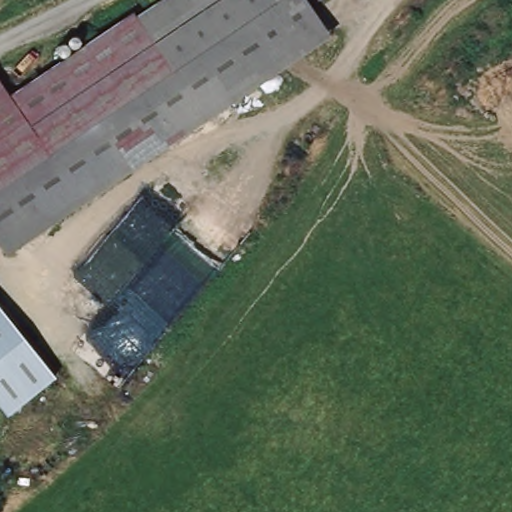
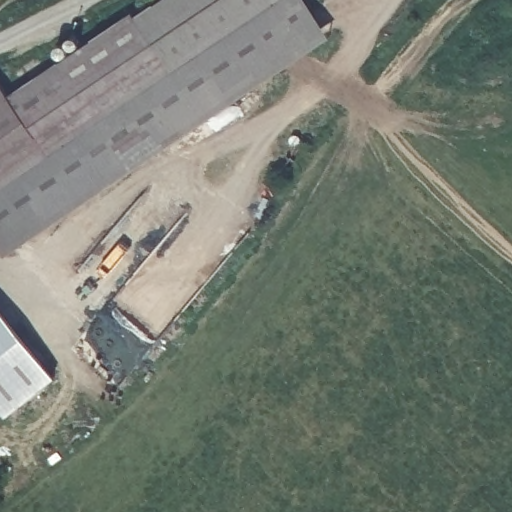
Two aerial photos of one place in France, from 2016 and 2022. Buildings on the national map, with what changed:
unchanged [(17,100),(132,22),(165,0),(311,0),(335,36),(190,135),(184,139),(174,125),(128,155),(139,170),(12,252),(0,236),(0,75),(17,100)]
unchanged [(24,341),(20,344),(0,359),(0,312),(24,341)]
unchanged [(0,407),(0,359),(20,344),(46,379),(7,412),(6,414),(0,407)]

